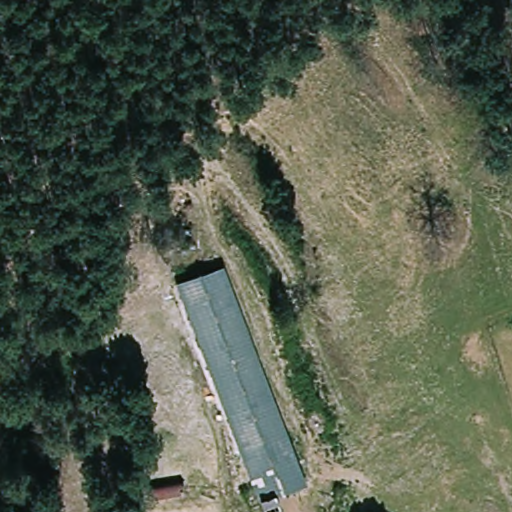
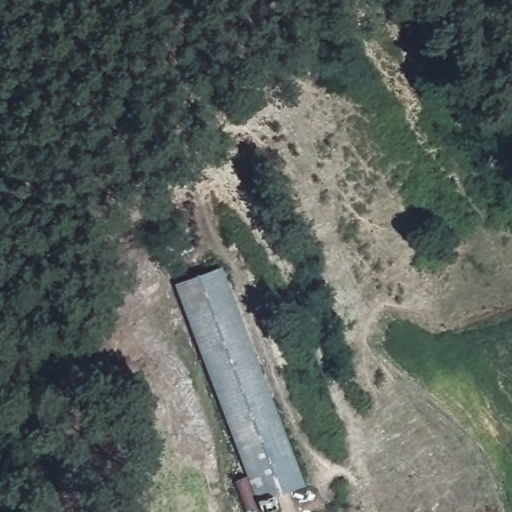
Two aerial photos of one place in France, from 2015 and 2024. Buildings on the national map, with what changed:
unchanged [(178,282),(224,265),(305,483),(276,494),(282,509),(273,512),(263,512),(178,282)]

